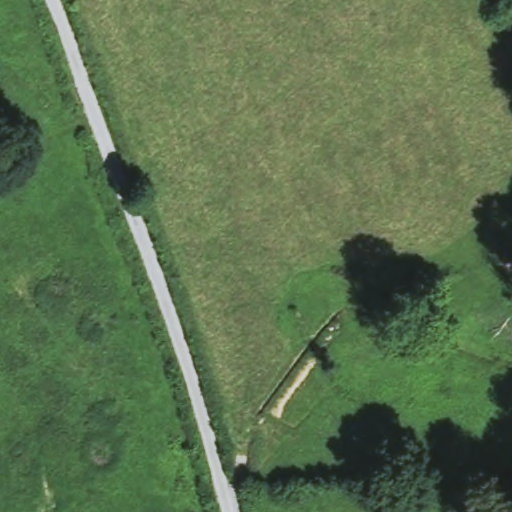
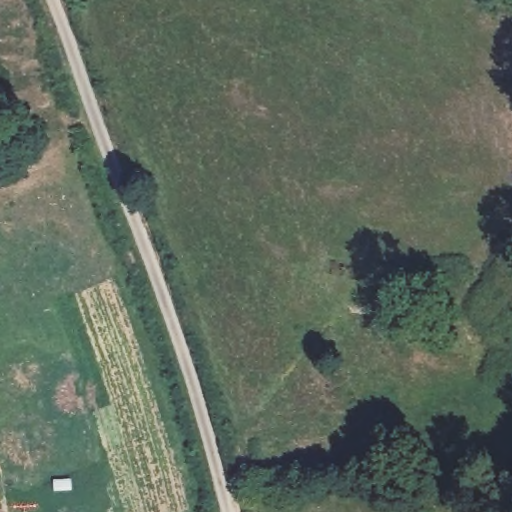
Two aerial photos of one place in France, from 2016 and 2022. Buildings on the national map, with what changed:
[]

